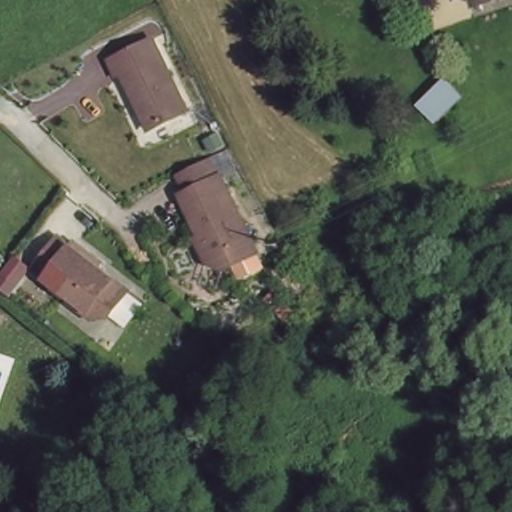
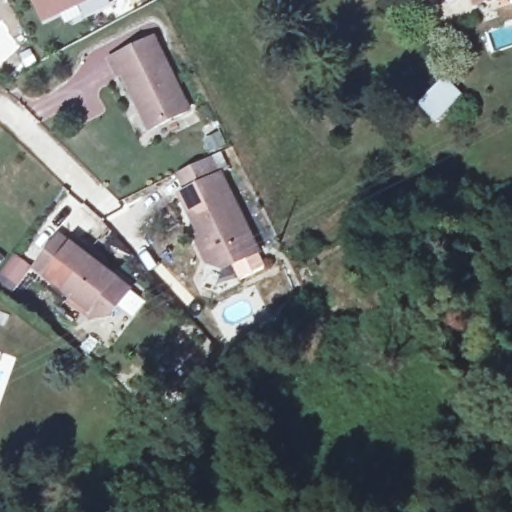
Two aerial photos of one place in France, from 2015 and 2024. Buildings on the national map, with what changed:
new [(36,0),(79,0),(45,17),(36,0)]
unchanged [(465,0),(483,0),(467,5),(465,0)]
unchanged [(185,107),(147,127),(120,70),(115,72),(106,55),(149,34),(185,107)]
unchanged [(464,97),(435,124),(412,104),(443,77),(464,97)]
unchanged [(206,162),(215,181),(221,177),(257,256),(222,272),(207,266),(195,240),(200,237),(181,195),(187,192),(180,175),(206,162)]
unchanged [(107,315),(87,317),(65,300),(69,295),(31,266),(55,234),(68,244),(71,240),(98,261),(95,265),(127,288),(107,315)]

